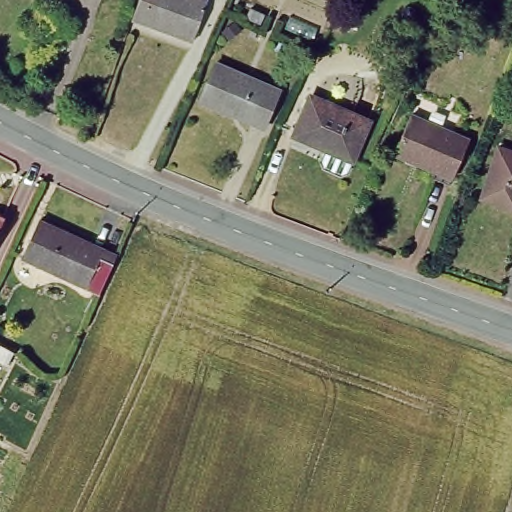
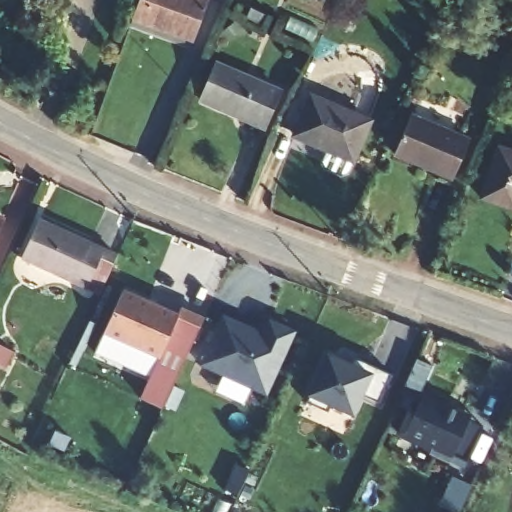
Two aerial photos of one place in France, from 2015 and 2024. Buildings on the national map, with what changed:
unchanged [(139,24),(140,19),(129,15),(134,0),(203,0),(190,41),(139,24)]
unchanged [(276,85),(259,124),(195,96),(214,59),(276,85)]
unchanged [(369,120),(352,159),(295,135),(312,94),(369,120)]
unchanged [(470,136),(455,176),(396,152),(410,113),(470,136)]
unchanged [(512,208),(482,199),(499,148),(512,152),(512,208)]
unchanged [(115,254),(99,292),(25,259),(42,222),(115,254)]
new [(178,314),(181,307),(204,317),(164,409),(141,399),(159,358),(104,334),(123,289),(178,314)]
new [(262,332),(269,319),(296,331),(266,396),(200,367),(224,315),(262,332)]
new [(159,358),(150,379),(94,356),(104,334),(159,358)]
new [(351,362),(354,359),(390,375),(379,402),(364,394),(354,417),(330,406),(327,411),(307,402),(307,396),(327,353),(351,362)]
new [(415,409),(422,394),(470,416),(450,464),(429,454),(430,451),(397,436),(409,408),(415,409)]

